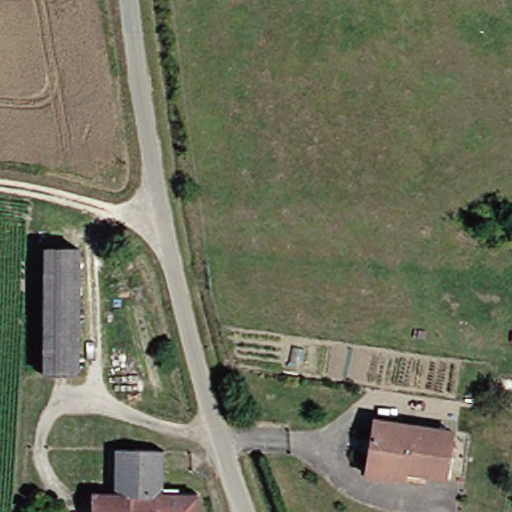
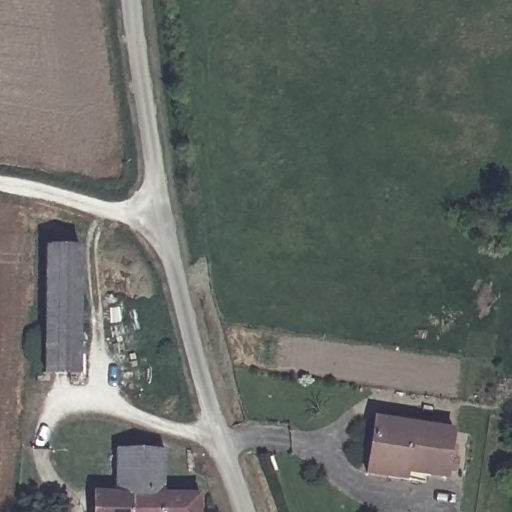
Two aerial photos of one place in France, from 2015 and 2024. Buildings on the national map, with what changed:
unchanged [(88,248),(87,373),(54,373),(54,247),(88,248)]
unchanged [(459,430),(453,477),(413,471),(412,480),(374,475),(381,418),(459,430)]
unchanged [(117,499),(119,452),(169,453),(169,471),(170,499),(204,498),(204,512),(101,512),(101,499),(117,499)]

